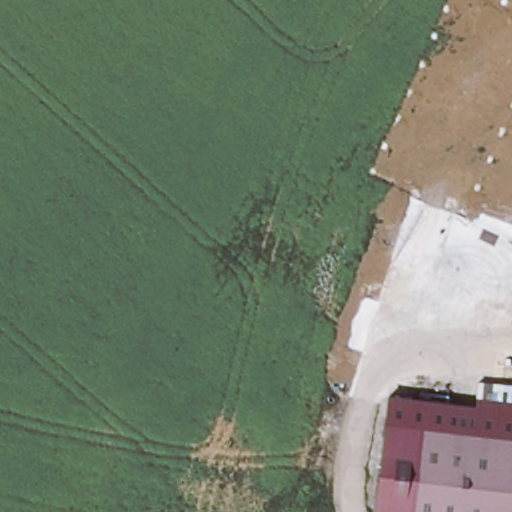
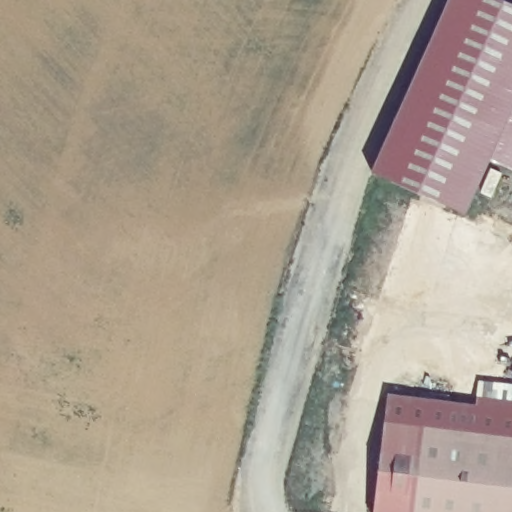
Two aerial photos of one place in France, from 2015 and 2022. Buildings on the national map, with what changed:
new [(512,5),(512,168),(491,159),(467,214),(373,173),(448,0),(501,0),(512,5)]
new [(478,394),(479,380),(512,384),(512,398),(478,394)]
unchanged [(422,422),(410,512),(374,512),(390,393),(477,405),(478,394),(512,398),(512,431),(422,422)]
unchanged [(419,467),(425,425),(512,437),(512,512),(414,512),(417,490),(419,467)]

